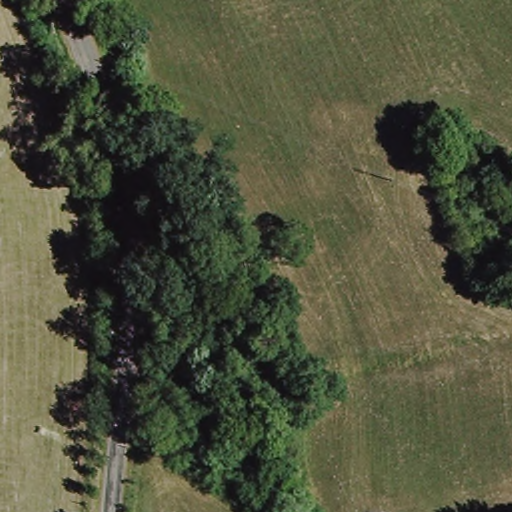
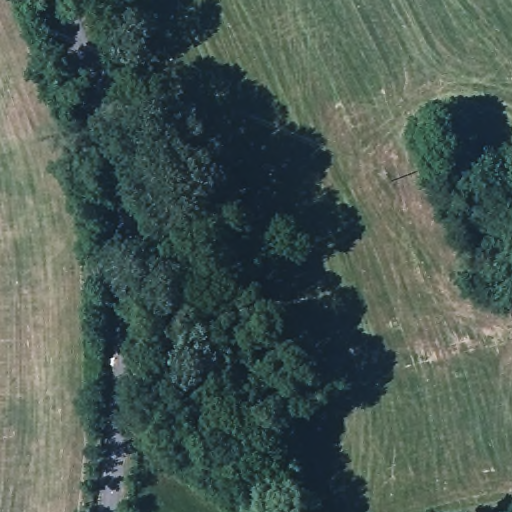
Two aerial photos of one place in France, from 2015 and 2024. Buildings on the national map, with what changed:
[]

